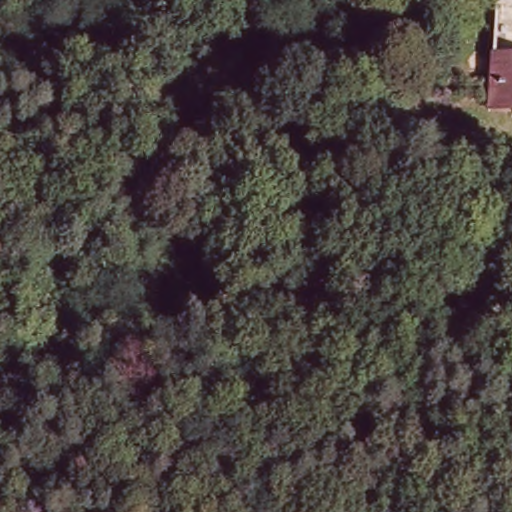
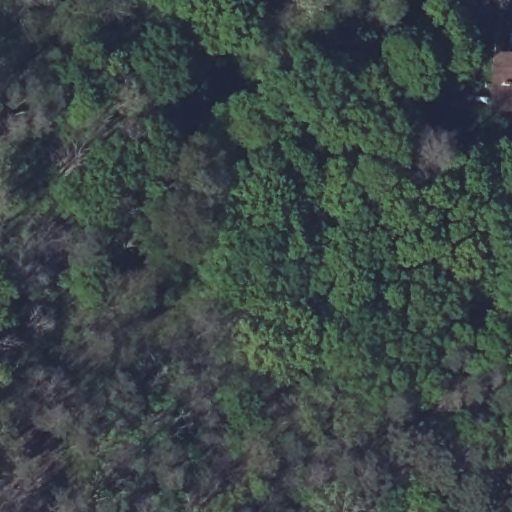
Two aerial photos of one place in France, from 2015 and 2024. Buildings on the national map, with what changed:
unchanged [(492,114),(494,93),(494,58),(512,59),(512,122),(491,121),(492,114)]

